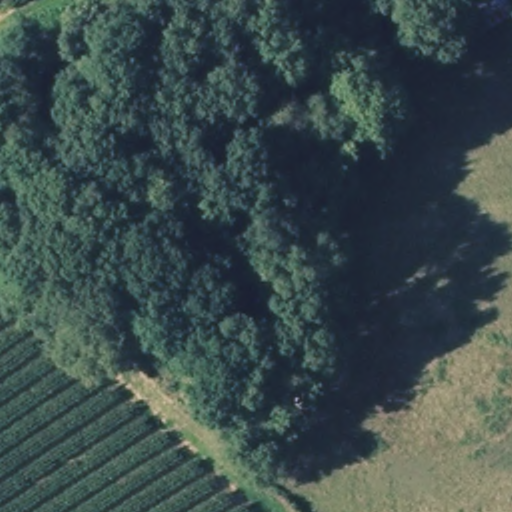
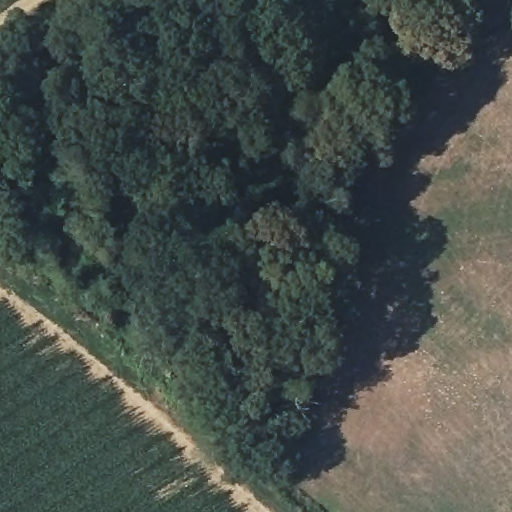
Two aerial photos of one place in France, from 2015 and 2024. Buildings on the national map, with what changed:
unchanged [(512,24),(476,38),(464,8),(492,0),(509,0),(512,6),(512,24)]

